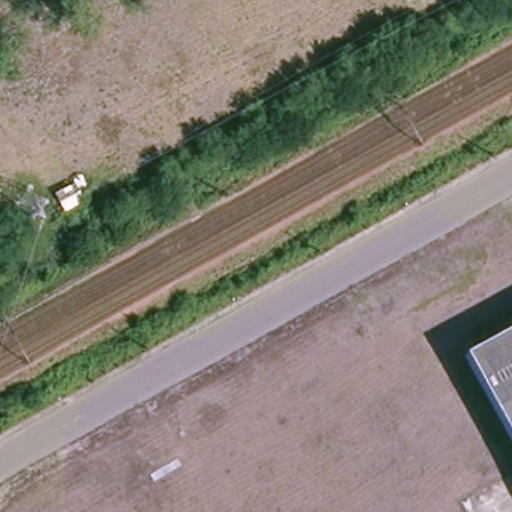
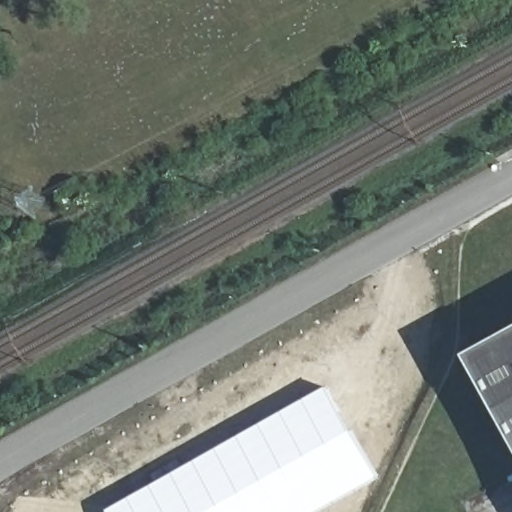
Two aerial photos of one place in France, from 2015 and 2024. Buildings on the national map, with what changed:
unchanged [(512,332),(512,437),(468,357),(512,332)]
new [(326,387),(377,478),(317,512),(107,512),(326,387)]

